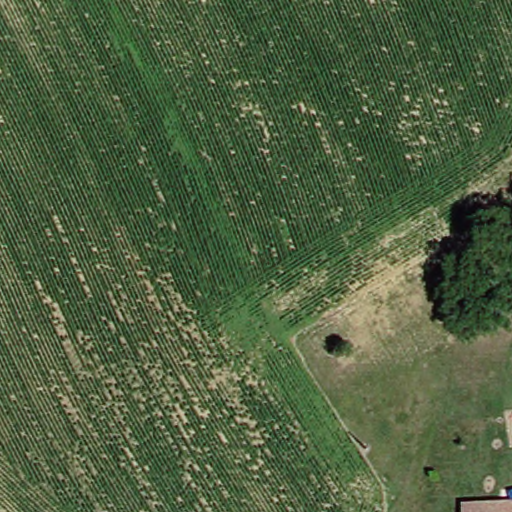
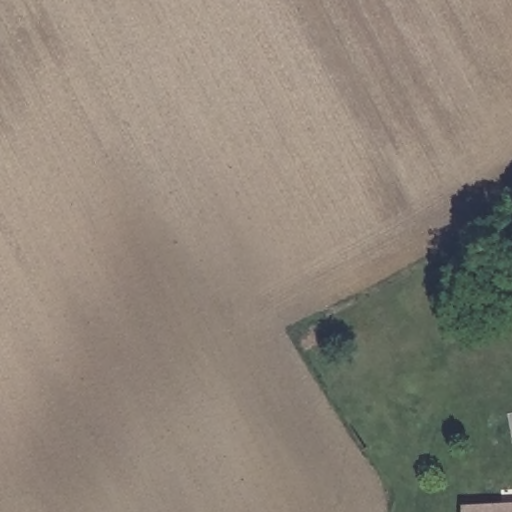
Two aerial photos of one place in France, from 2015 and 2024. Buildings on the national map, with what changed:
unchanged [(512,502),(512,512),(465,512),(464,502),(512,502)]

